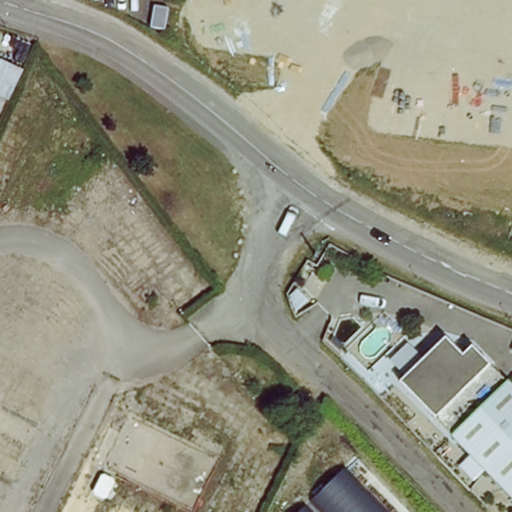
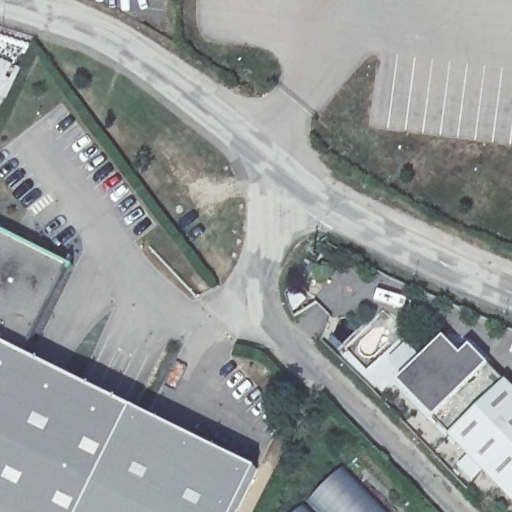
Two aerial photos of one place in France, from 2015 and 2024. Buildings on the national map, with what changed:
new [(0,512),(0,232),(70,265),(21,355),(133,412),(84,512),(0,512)]
unchanged [(398,379),(445,333),(464,351),(472,343),(512,382),(512,435),(484,464),(480,468),(398,379)]
new [(256,471),(236,512),(84,512),(133,412),(256,471)]
unchanged [(484,464),(512,435),(512,502),(480,468),(484,464)]
new [(384,512),(324,512),(313,500),(343,470),(384,512)]
new [(307,512),(298,512),(303,507),(307,512)]

